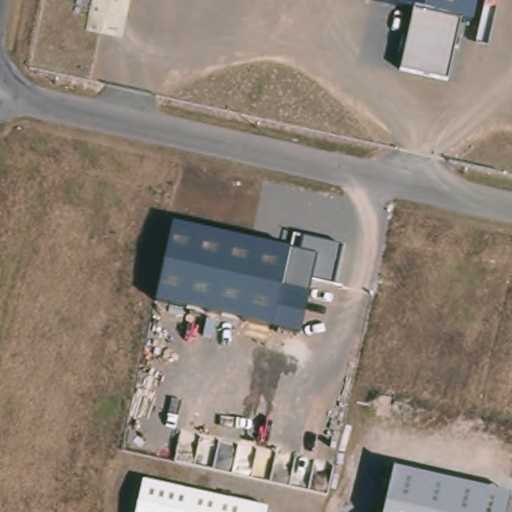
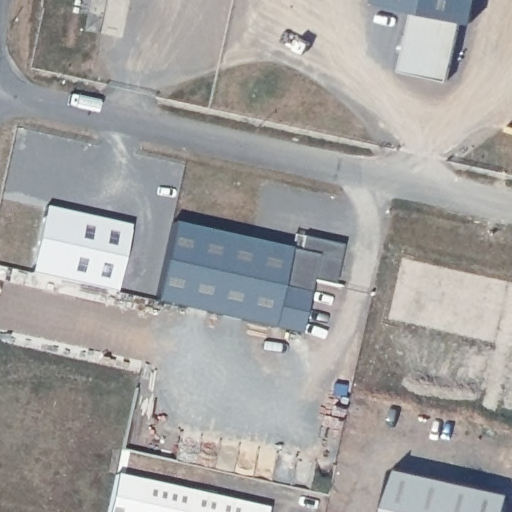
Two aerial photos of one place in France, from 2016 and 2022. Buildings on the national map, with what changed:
unchanged [(411,8),(379,0),(474,0),(470,22),(457,19),(444,79),(398,67),(411,8)]
new [(30,272),(45,206),(131,225),(116,291),(30,272)]
unchanged [(171,223),(290,248),(293,235),(342,246),(332,286),(311,281),(300,333),(272,327),(155,301),(171,223)]
unchanged [(393,467),(509,495),(505,512),(382,512),(393,467)]
new [(116,475),(142,480),(135,512),(108,512),(116,475)]
unchanged [(142,480),(191,490),(187,512),(135,512),(142,480)]
unchanged [(191,490),(266,506),(265,512),(187,512),(191,490)]

